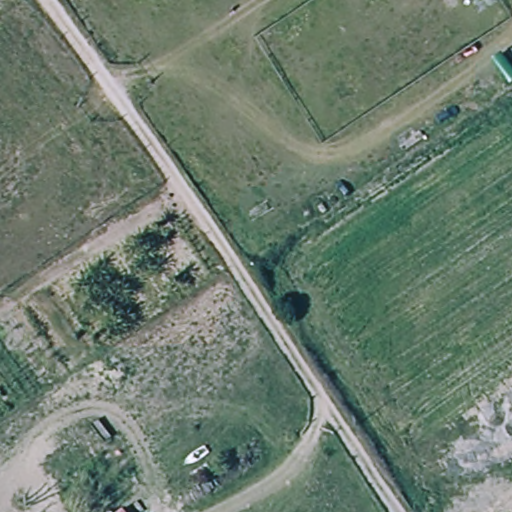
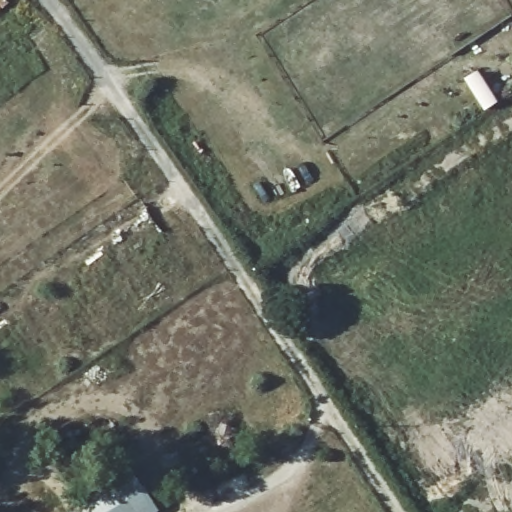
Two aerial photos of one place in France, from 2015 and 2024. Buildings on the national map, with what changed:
new [(158,511),(156,512),(86,512),(78,500),(128,466),(158,511)]

